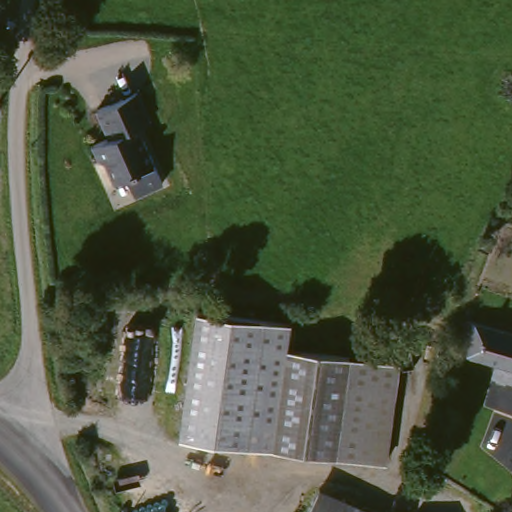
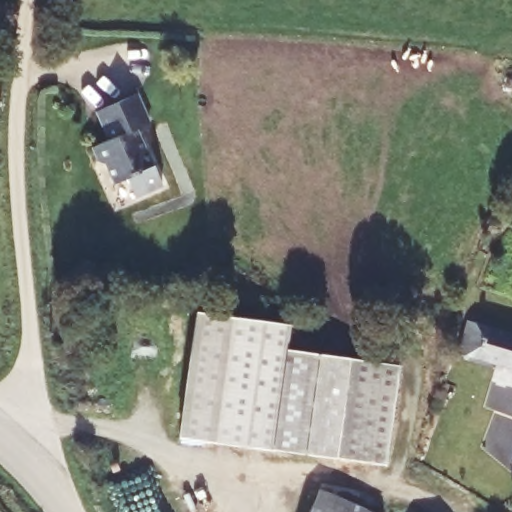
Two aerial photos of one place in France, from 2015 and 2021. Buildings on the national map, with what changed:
unchanged [(138,134),(159,191),(131,201),(123,179),(106,185),(92,149),(110,142),(100,115),(141,99),(152,129),(138,134)]
unchanged [(288,322),(286,347),(398,365),(383,465),(177,438),(194,310),(288,322)]
unchanged [(509,388),(511,377),(453,360),(464,326),(512,338),(512,390),(509,388)]
unchanged [(501,466),(512,452),(512,475),(501,466)]
unchanged [(351,512),(307,512),(313,497),(351,512)]

